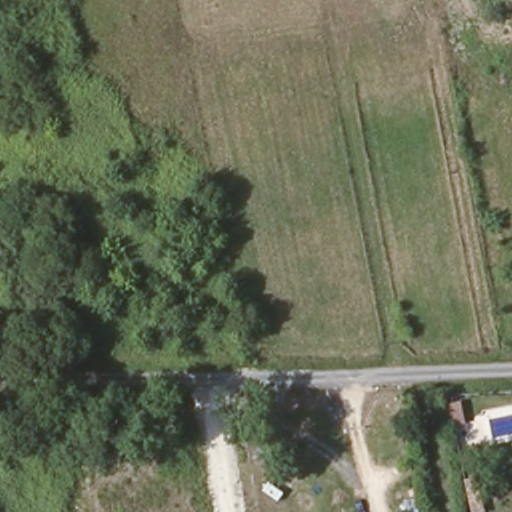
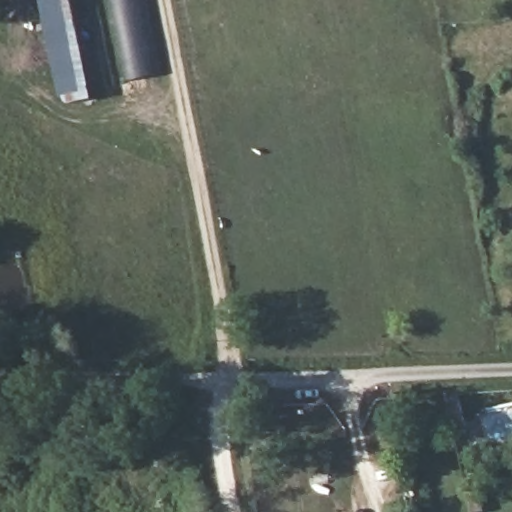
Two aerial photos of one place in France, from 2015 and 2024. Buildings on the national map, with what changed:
new [(61,98),(42,0),(72,0),(95,98),(69,105),(67,97),(61,98)]
new [(98,0),(142,0),(157,74),(116,84),(98,0)]
unchanged [(413,403),(417,424),(406,426),(403,413),(402,406),(413,403)]

